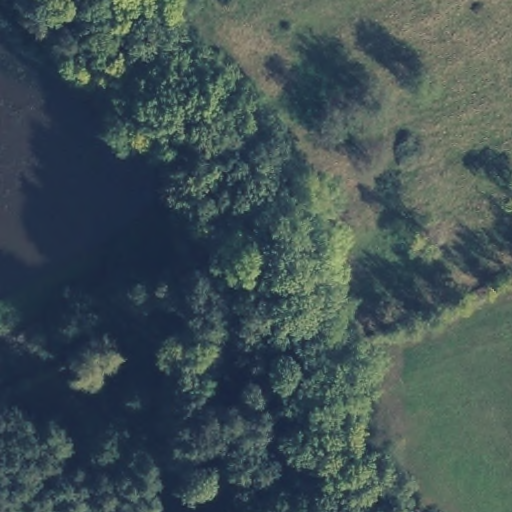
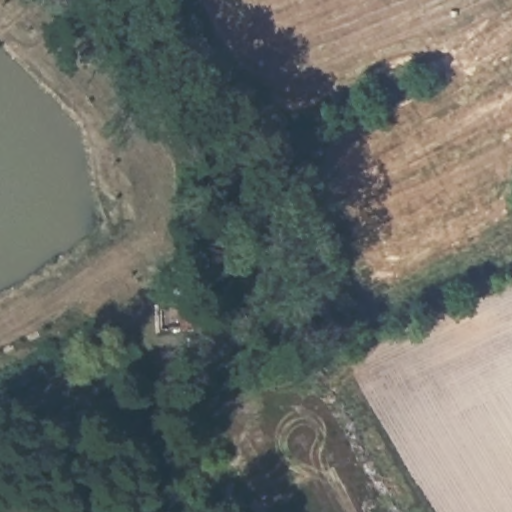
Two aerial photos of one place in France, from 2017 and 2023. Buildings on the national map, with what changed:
unchanged [(191,298),(194,321),(156,323),(155,300),(191,298)]

